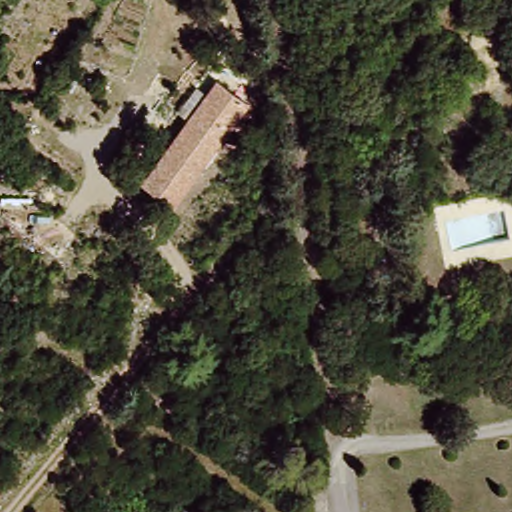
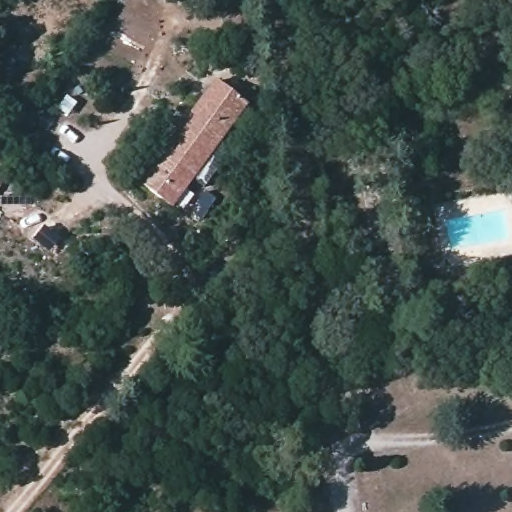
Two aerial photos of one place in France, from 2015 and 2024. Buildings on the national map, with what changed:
unchanged [(169,197),(144,177),(217,81),(244,101),(169,197)]

